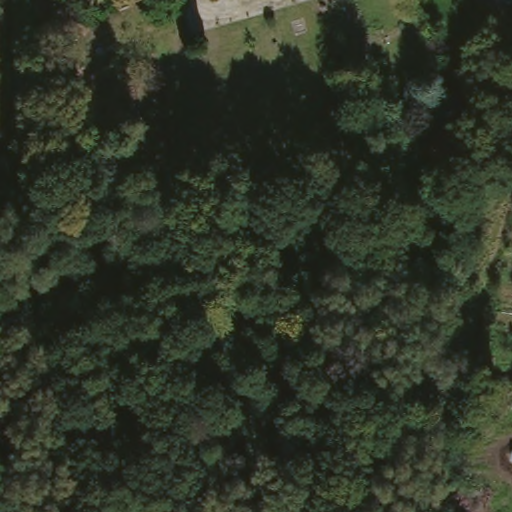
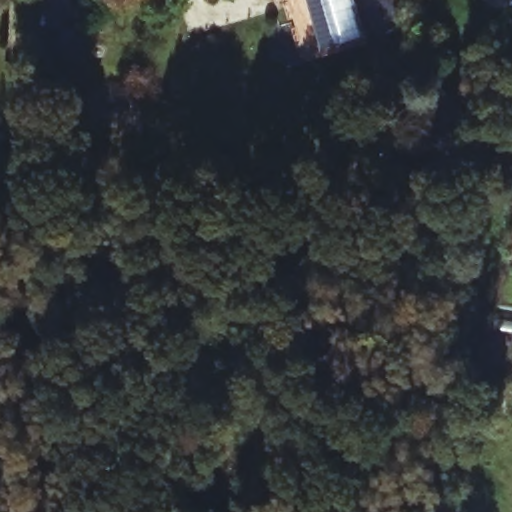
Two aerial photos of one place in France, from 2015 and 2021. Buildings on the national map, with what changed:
new [(364,37),(321,49),(306,0),(353,0),(364,37)]
unchanged [(23,71),(26,89),(13,91),(10,72),(23,71)]
unchanged [(414,140),(451,124),(475,179),(439,195),(414,140)]

